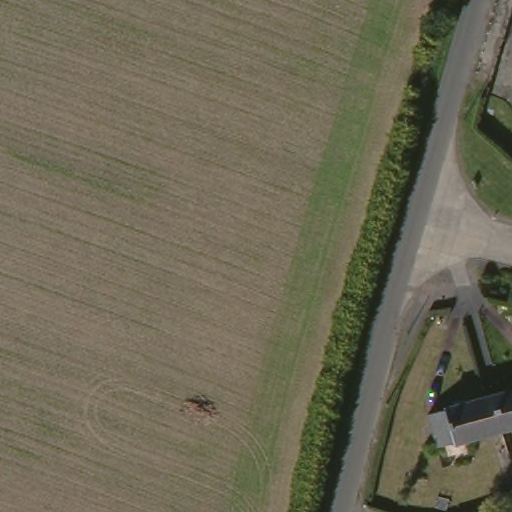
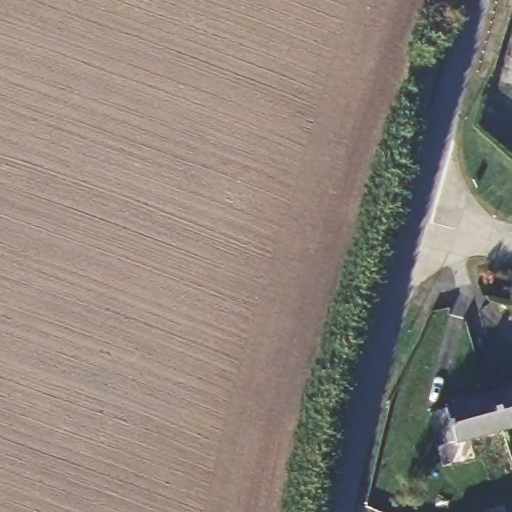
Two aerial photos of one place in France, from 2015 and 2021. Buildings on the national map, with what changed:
unchanged [(512,428),(451,444),(439,410),(512,392),(512,428)]
unchanged [(485,493),(491,512),(455,512),(452,502),(485,493)]

